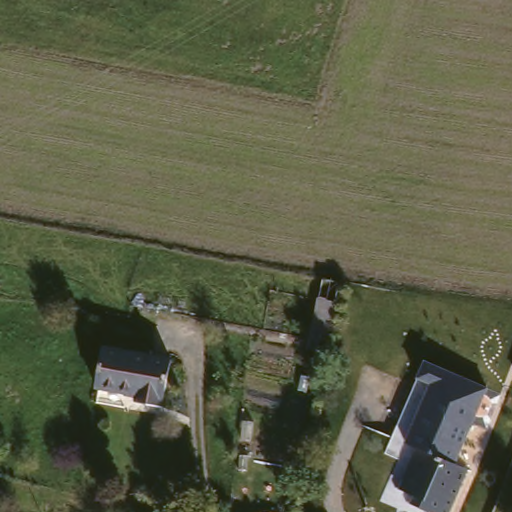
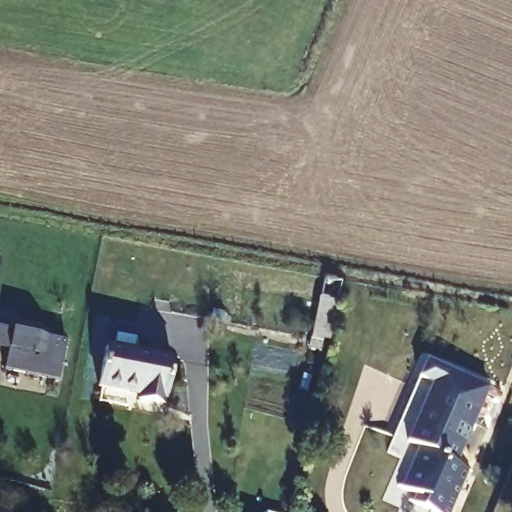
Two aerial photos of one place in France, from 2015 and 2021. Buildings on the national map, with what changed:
unchanged [(305,335),(317,274),(320,274),(327,274),(335,275),(321,338),(313,336),(305,335)]
new [(10,330),(47,337),(64,341),(55,382),(4,371),(8,350),(0,348),(0,327),(10,330)]
unchanged [(162,406),(139,403),(140,396),(100,388),(107,345),(173,357),(162,406)]
unchanged [(491,388),(463,460),(470,464),(447,512),(444,512),(400,492),(419,451),(406,445),(430,386),(420,380),(427,359),(491,388)]
unchanged [(260,511),(263,512),(260,512),(260,511)]

